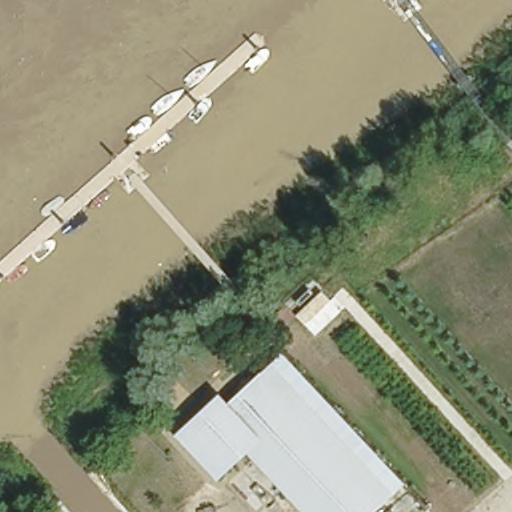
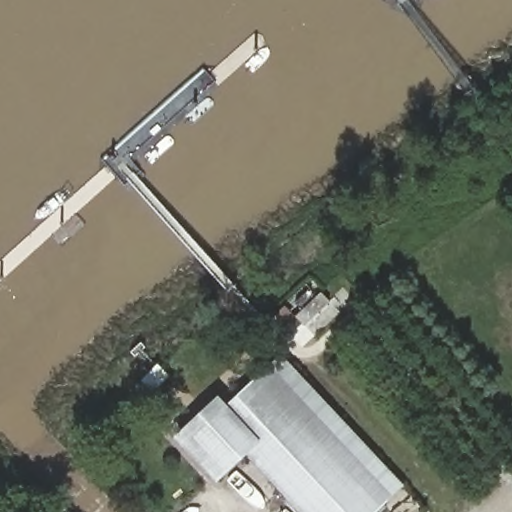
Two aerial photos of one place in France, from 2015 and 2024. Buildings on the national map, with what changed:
unchanged [(280,324),(271,311),(285,300),(295,312),(280,324)]
unchanged [(375,512),(299,512),(244,453),(214,480),(171,433),(215,391),(226,401),(269,361),(394,494),(375,512)]

